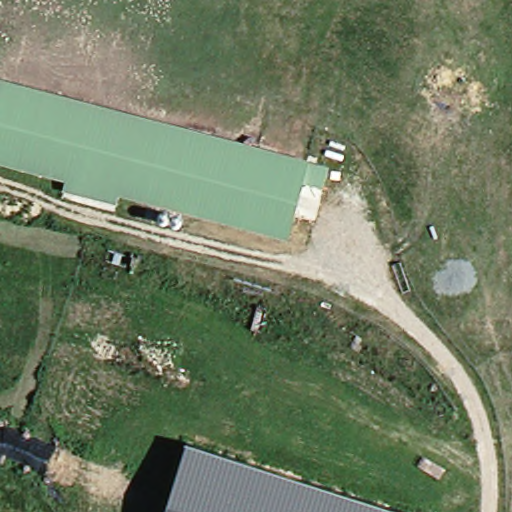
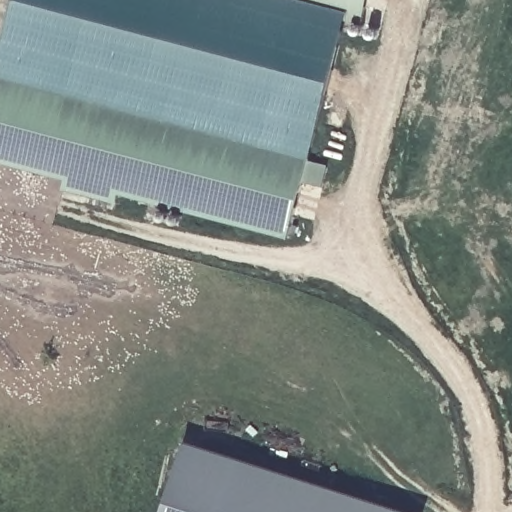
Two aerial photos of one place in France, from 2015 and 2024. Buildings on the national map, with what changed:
new [(362,19),(345,15),(311,159),(0,79),(0,46),(11,0),(352,0),(366,4),(362,19)]
new [(352,0),(367,0),(366,4),(352,0)]
unchanged [(311,159),(330,164),(324,189),(304,184),(288,241),(119,197),(116,207),(61,193),(63,182),(0,165),(0,79),(311,159)]
new [(418,512),(162,512),(186,439),(418,512)]

